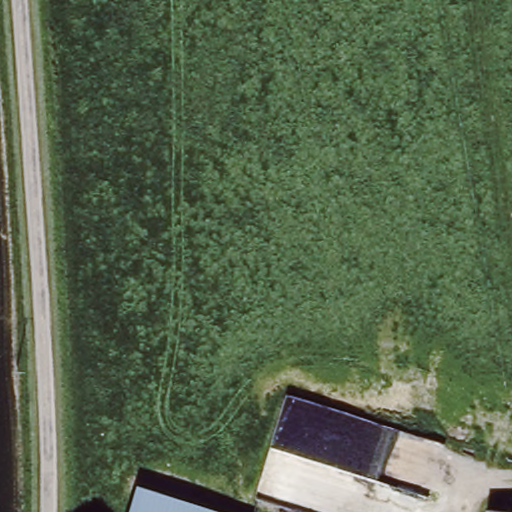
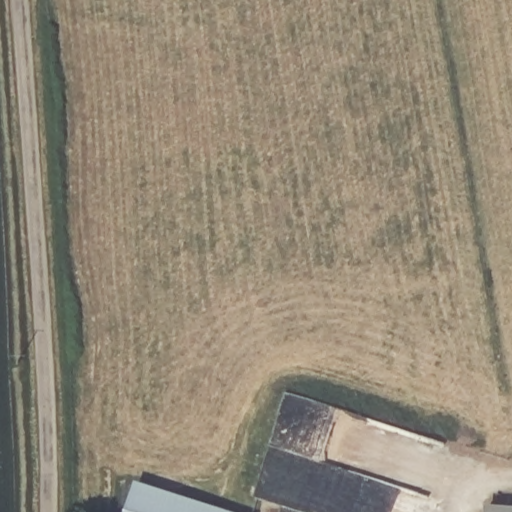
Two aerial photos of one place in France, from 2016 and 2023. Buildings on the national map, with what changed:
unchanged [(215,512),(127,512),(135,487),(215,512)]
unchanged [(487,512),(488,506),(512,508),(512,512),(487,512)]

